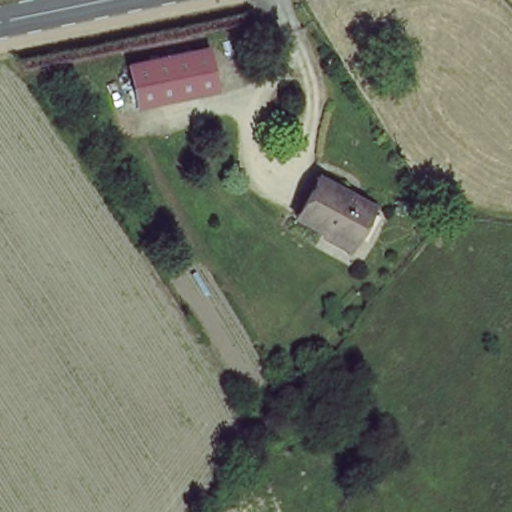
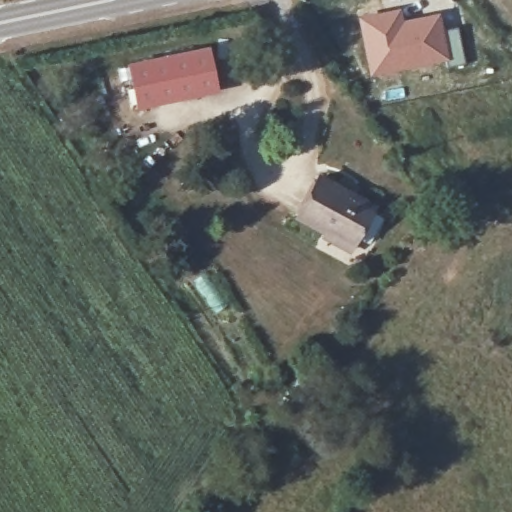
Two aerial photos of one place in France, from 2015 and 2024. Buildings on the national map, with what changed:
new [(401,6),(404,19),(441,12),(444,29),(458,26),(464,63),(450,67),(449,62),(369,78),(356,15),(401,6)]
unchanged [(204,48),(212,88),(133,103),(126,63),(204,48)]
unchanged [(323,237),(326,233),(299,220),(323,180),(375,210),(355,246),(351,253),(323,237)]

